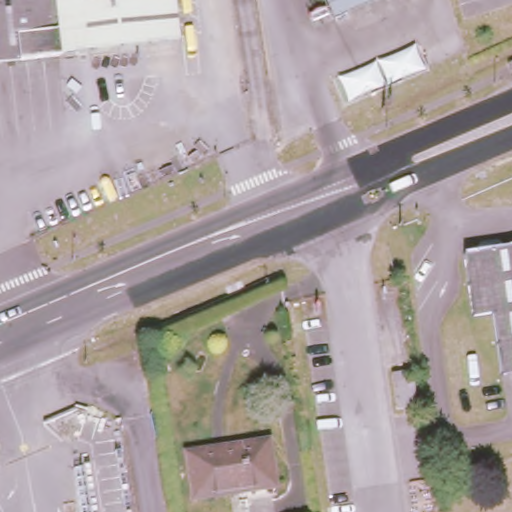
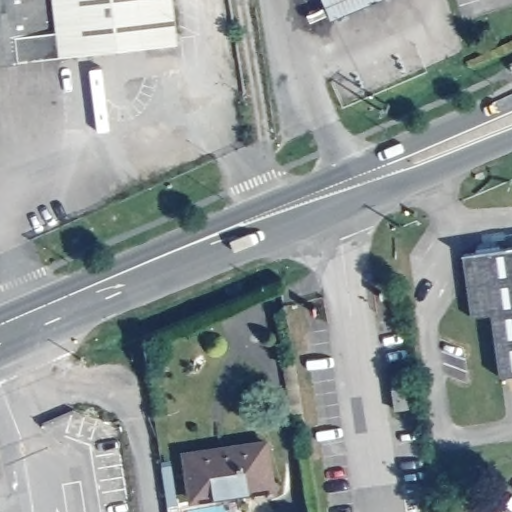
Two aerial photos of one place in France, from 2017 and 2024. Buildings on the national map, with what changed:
unchanged [(78,61),(0,67),(0,0),(73,0),(78,61)]
unchanged [(99,60),(78,61),(73,0),(94,0),(99,60)]
unchanged [(176,55),(99,60),(94,0),(171,0),(176,55)]
unchanged [(390,1),(334,24),(323,0),(389,0),(390,1)]
unchanged [(505,379),(496,316),(475,320),(467,257),(479,255),(479,250),(482,246),(501,244),(506,245),(506,250),(512,250),(512,378),(505,379)]
unchanged [(389,373),(409,370),(414,406),(394,408),(389,373)]
unchanged [(246,491),(193,500),(186,452),(266,440),(273,477),(274,487),(246,491)]

